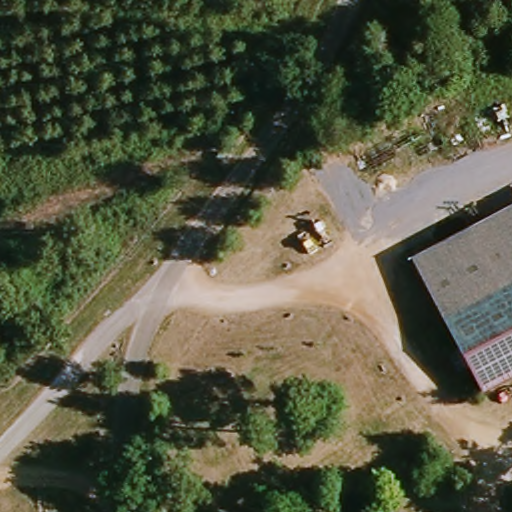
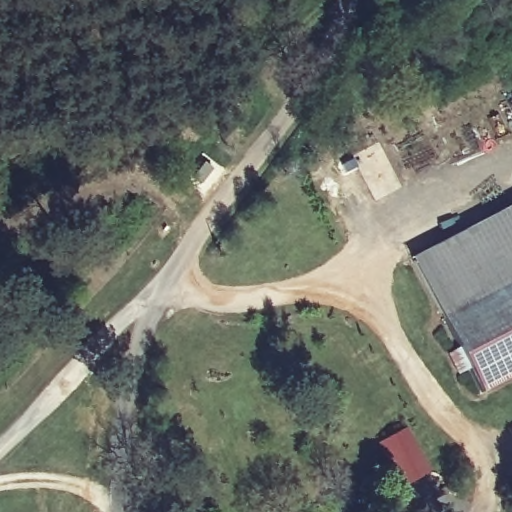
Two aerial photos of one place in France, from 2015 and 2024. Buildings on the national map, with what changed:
unchanged [(472,215),(512,201),(512,272),(492,279),(472,215)]
unchanged [(512,272),(512,379),(464,395),(412,235),(472,215),(492,279),(512,272)]
new [(379,445),(406,431),(410,439),(413,438),(415,441),(412,443),(425,468),(429,466),(432,472),(402,488),(379,445)]

